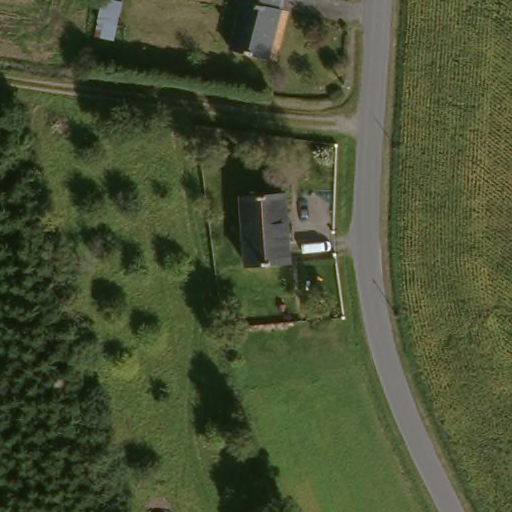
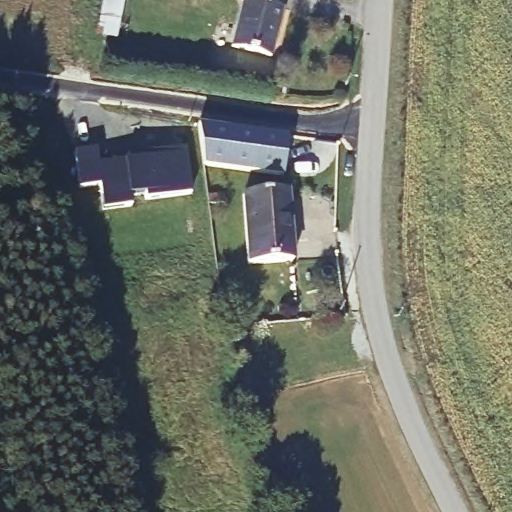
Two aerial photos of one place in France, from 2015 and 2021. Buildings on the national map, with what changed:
unchanged [(105,37),(109,0),(127,0),(122,40),(105,37)]
unchanged [(239,46),(251,0),(291,0),(277,56),(239,46)]
new [(283,177),(203,166),(199,123),(287,136),(283,177)]
new [(186,151),(190,185),(192,193),(145,201),(145,193),(129,196),(130,206),(102,210),(100,186),(78,189),(75,151),(96,147),(99,165),(126,160),(125,155),(184,146),(186,151)]
unchanged [(296,255),(255,259),(250,193),(292,190),(296,255)]

